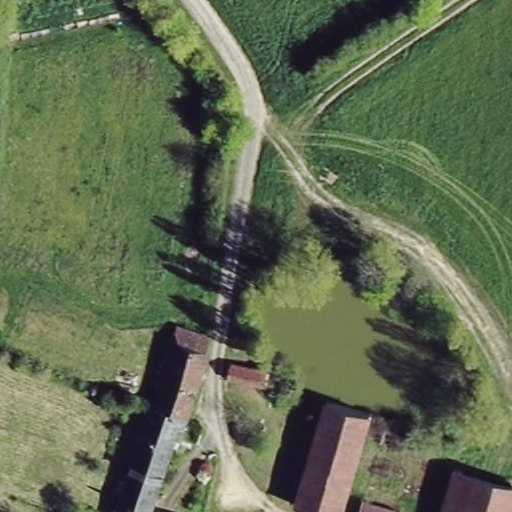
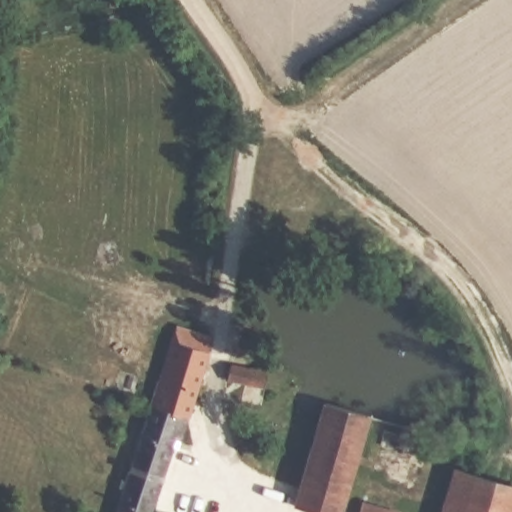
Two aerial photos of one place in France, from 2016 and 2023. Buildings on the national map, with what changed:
unchanged [(151,391),(170,325),(213,338),(208,358),(214,360),(190,445),(177,441),(155,512),(116,512),(151,391)]
unchanged [(267,389),(234,386),(236,361),(267,363),(267,389)]
unchanged [(326,512),(310,512),(293,507),(324,401),(355,411),(326,512)]
unchanged [(452,480),(512,500),(512,512),(441,512),(452,480)]
unchanged [(362,504),(397,512),(361,512),(362,504)]

